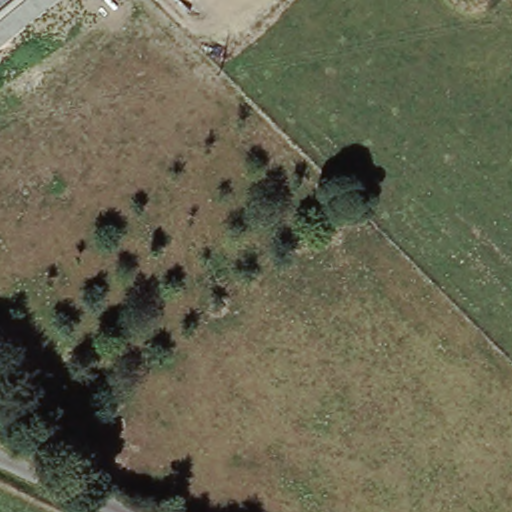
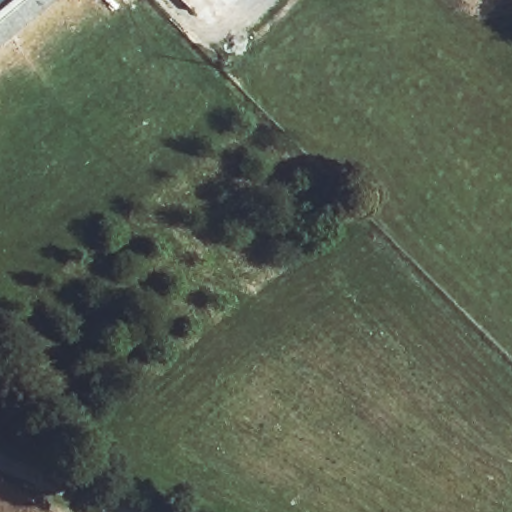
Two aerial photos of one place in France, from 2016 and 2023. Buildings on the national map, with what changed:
unchanged [(0,0),(65,0),(0,52),(0,0)]

